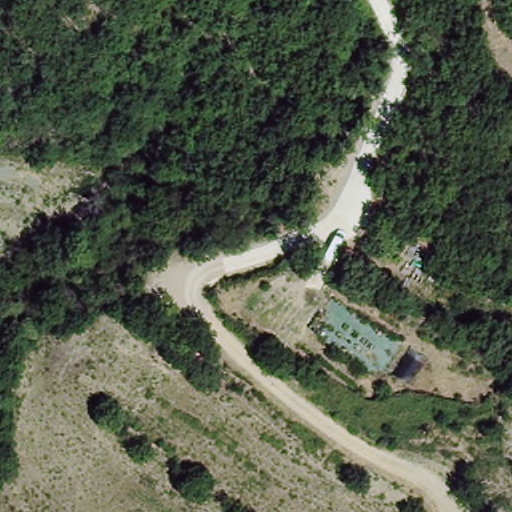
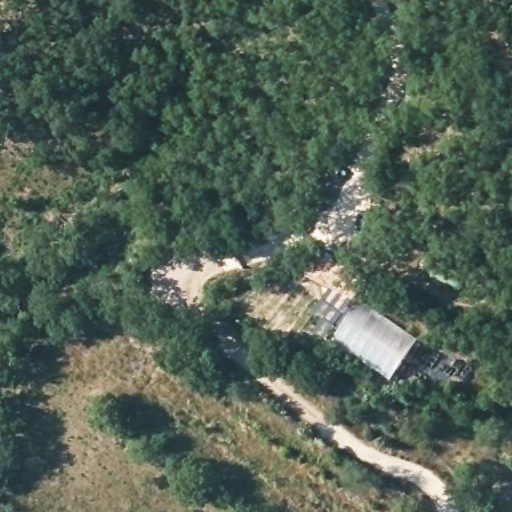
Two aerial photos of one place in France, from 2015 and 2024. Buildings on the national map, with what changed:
new [(419,341),(392,382),(333,341),(362,301),(419,341)]

